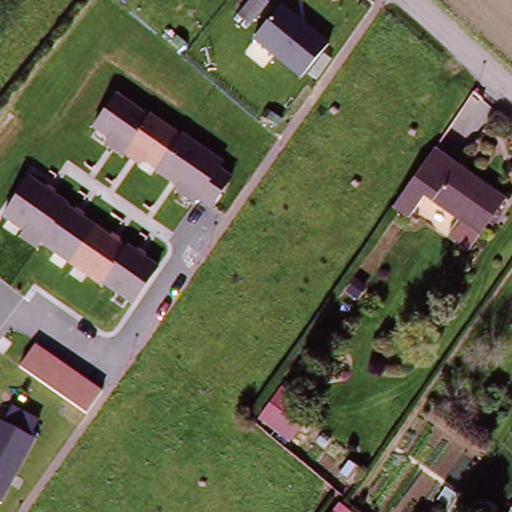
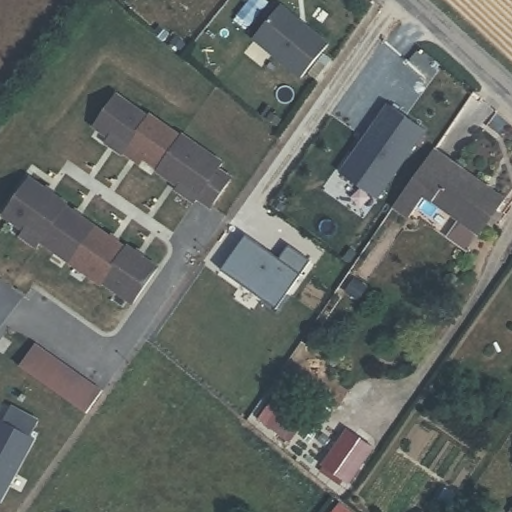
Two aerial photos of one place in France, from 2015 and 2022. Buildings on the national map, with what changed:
unchanged [(278,7),(328,45),(300,81),(252,41),(278,7)]
unchanged [(147,115),(148,113),(180,135),(182,134),(222,163),(218,169),(230,179),(210,212),(196,202),(193,207),(173,192),(176,187),(143,164),(140,169),(102,144),(106,139),(90,128),(114,93),(147,115)]
new [(350,153),(352,154),(357,148),(355,146),(385,104),(422,129),(373,198),(337,172),(350,153)]
unchanged [(397,203),(433,154),(487,194),(464,227),(422,195),(410,212),(397,203)]
unchanged [(42,244),(36,251),(18,239),(23,231),(2,217),(29,175),(158,269),(132,307),(42,244)]
new [(258,300),(218,272),(243,237),(277,261),(286,248),(308,264),(285,297),(273,312),(258,300)]
unchanged [(102,389),(86,414),(18,367),(34,342),(102,389)]
unchanged [(260,420),(272,403),(304,425),(292,440),(260,420)]
unchanged [(34,439),(0,504),(0,420),(34,439)]
new [(348,430),(373,448),(347,484),(322,467),(348,430)]
unchanged [(333,507),(341,512),(329,512),(333,507)]

